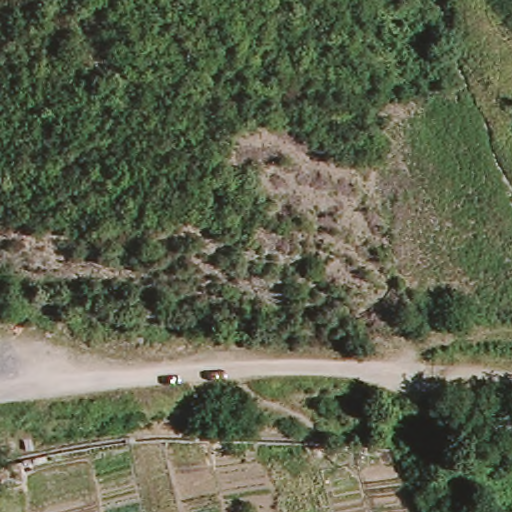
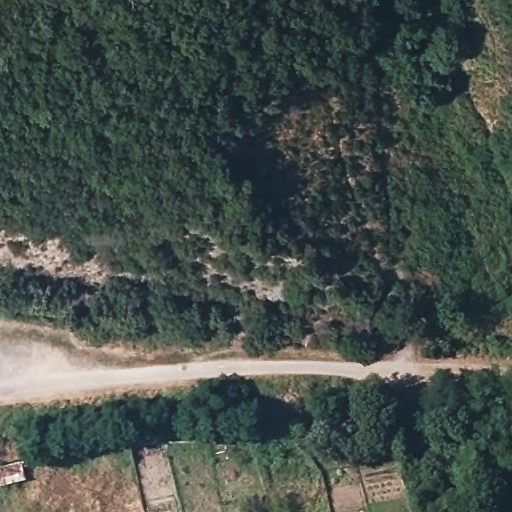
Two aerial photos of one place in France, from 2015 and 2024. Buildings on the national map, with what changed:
[]

